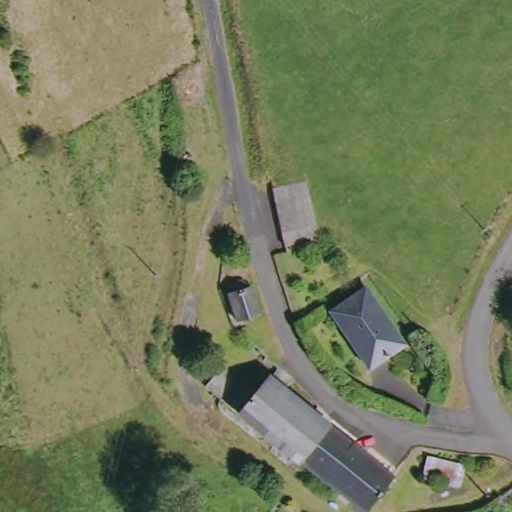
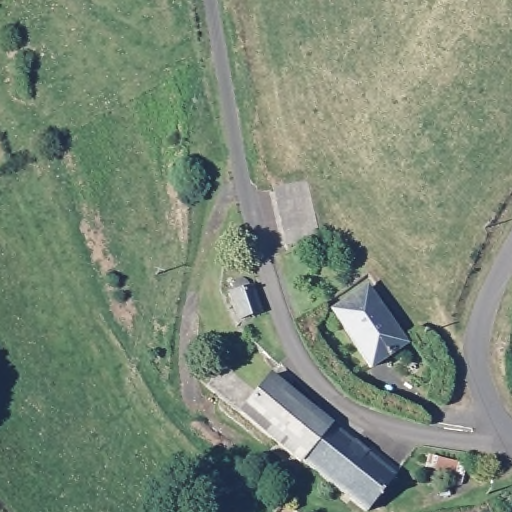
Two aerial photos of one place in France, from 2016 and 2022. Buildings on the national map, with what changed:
unchanged [(310,184),(324,240),(290,249),(278,192),(310,184)]
unchanged [(233,284),(236,282),(236,281),(236,280),(235,279),(236,278),(236,277),(236,276),(237,275),(238,275),(239,274),(240,274),(241,274),(243,275),(244,275),(244,276),(245,277),(246,278),(251,279),(259,310),(242,315),(233,284)]
unchanged [(374,287),(408,348),(371,371),(339,310),(374,287)]
unchanged [(326,420),(385,467),(398,478),(368,512),(359,512),(244,416),(276,377),(311,409),(326,420)]

